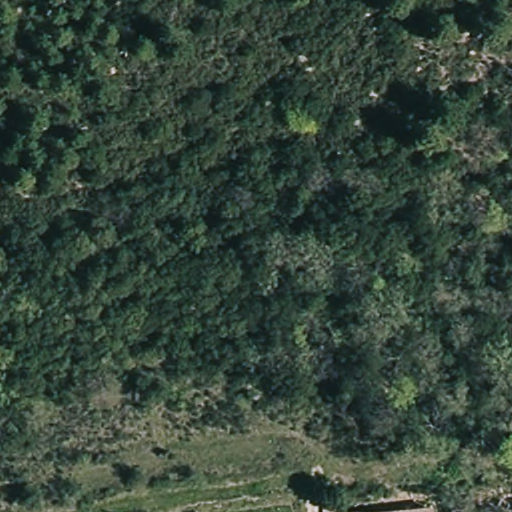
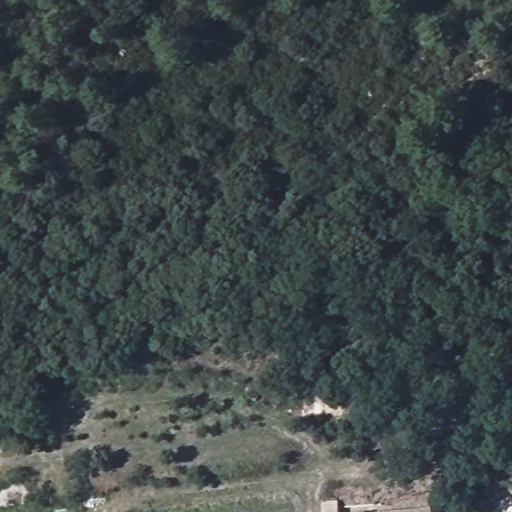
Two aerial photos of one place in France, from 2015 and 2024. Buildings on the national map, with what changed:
unchanged [(443,512),(442,507),(452,506),(453,512),(443,512)]

